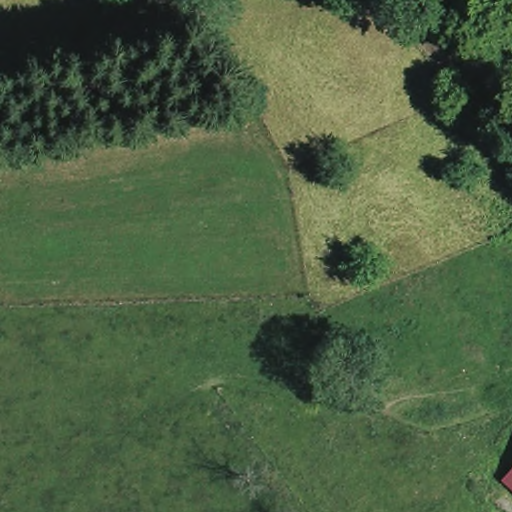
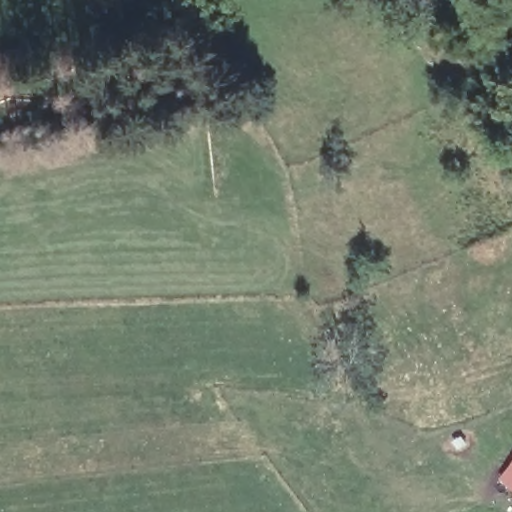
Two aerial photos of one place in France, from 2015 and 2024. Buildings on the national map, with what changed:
unchanged [(512,468),(512,489),(502,479),(512,468)]

